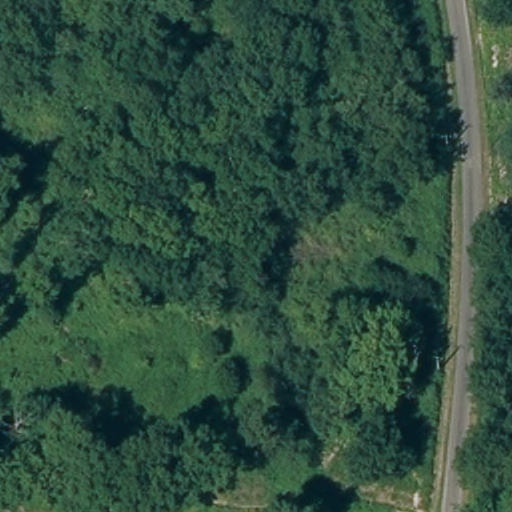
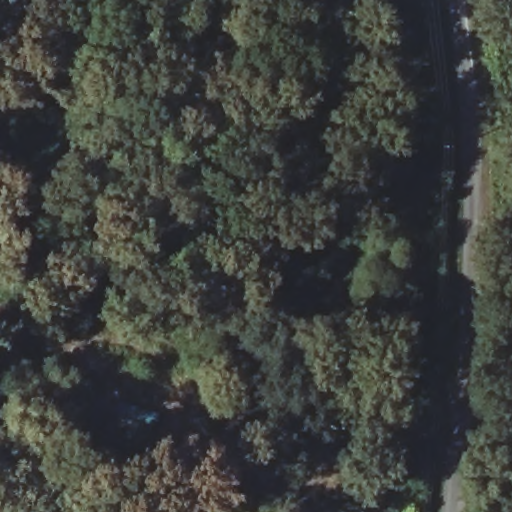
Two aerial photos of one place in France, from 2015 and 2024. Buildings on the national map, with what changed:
[]

